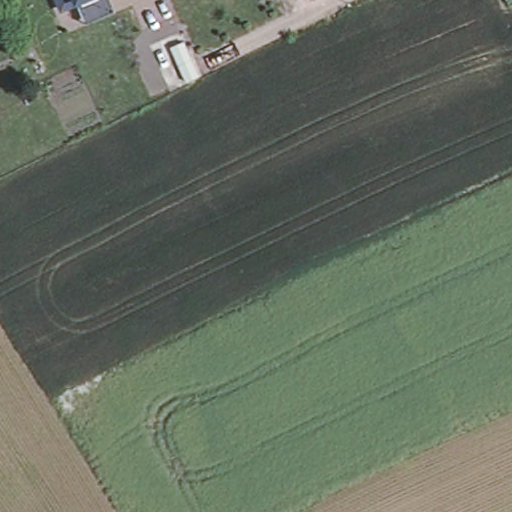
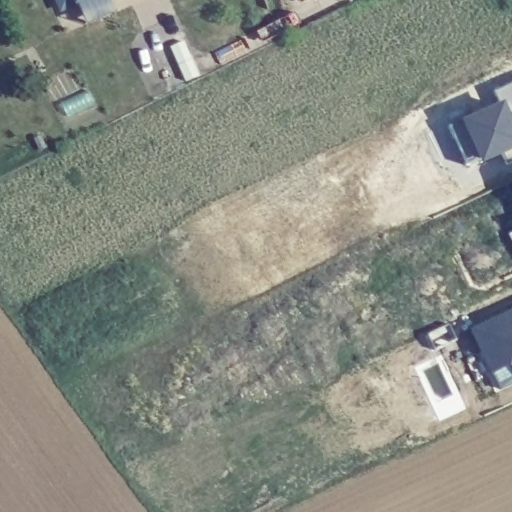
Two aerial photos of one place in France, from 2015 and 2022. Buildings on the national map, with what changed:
unchanged [(56,0),(92,0),(61,13),(56,0)]
new [(495,91),(512,83),(512,159),(505,162),(502,150),(483,160),(480,150),(464,158),(448,123),(500,101),(495,91)]
new [(512,233),(512,243),(508,234),(512,233)]
new [(512,385),(498,391),(472,328),(512,310),(512,385)]

